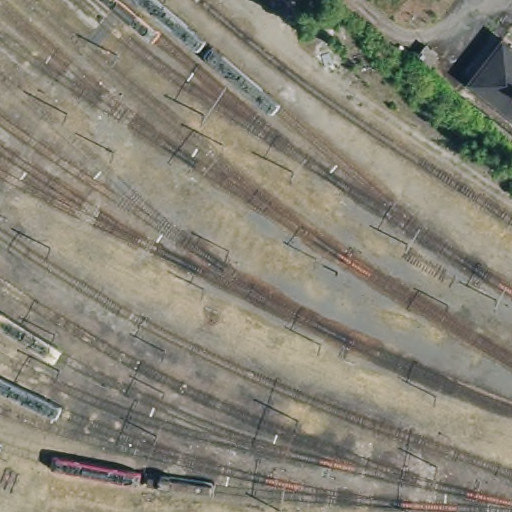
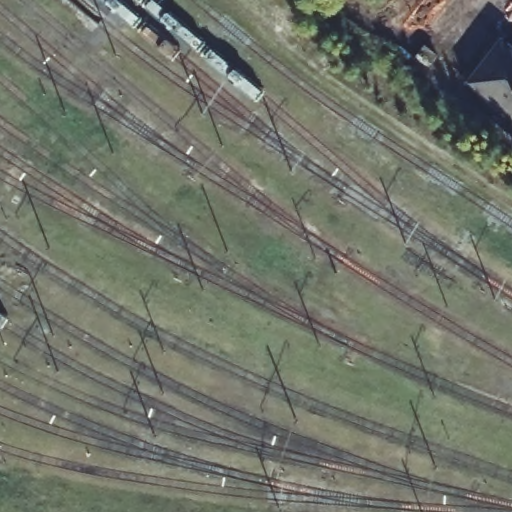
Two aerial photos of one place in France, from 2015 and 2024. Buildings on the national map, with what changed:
unchanged [(506,37),(512,42),(512,111),(472,80),(506,37)]

